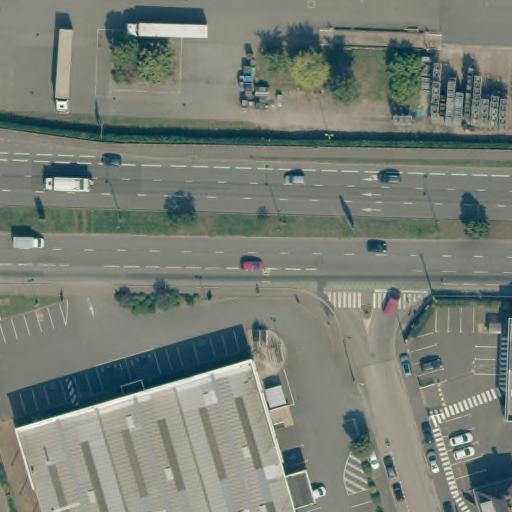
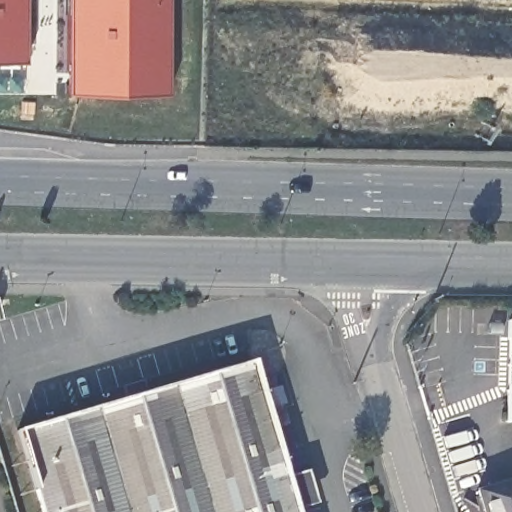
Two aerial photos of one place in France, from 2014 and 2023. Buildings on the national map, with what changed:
new [(24,70),(0,70),(0,0),(25,0),(24,70)]
new [(165,105),(66,106),(68,0),(168,0),(165,105)]
unchanged [(511,322),(512,322),(512,422),(506,422),(511,322)]
unchanged [(67,415),(64,406),(80,401),(82,411),(178,381),(175,372),(191,367),(194,377),(245,361),(290,512),(38,512),(14,431),(67,415)]
unchanged [(512,481),(512,512),(482,512),(476,492),(512,481)]

